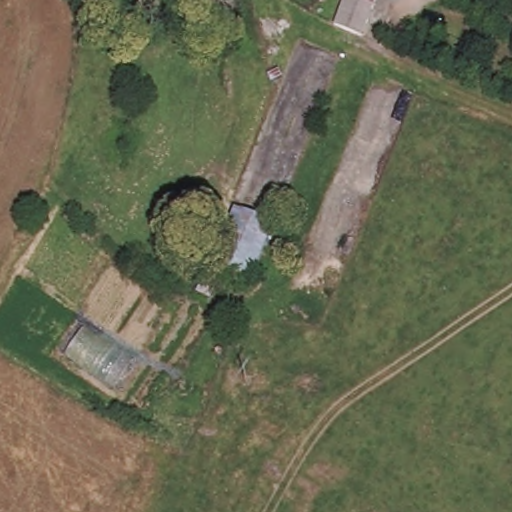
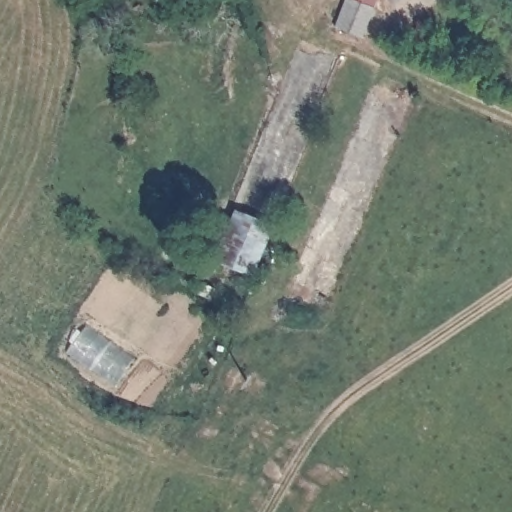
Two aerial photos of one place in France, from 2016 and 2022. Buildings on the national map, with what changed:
unchanged [(350,0),(373,9),(360,40),(332,27),(343,0),(350,0)]
unchanged [(212,263),(231,212),(270,226),(249,278),(212,263)]

